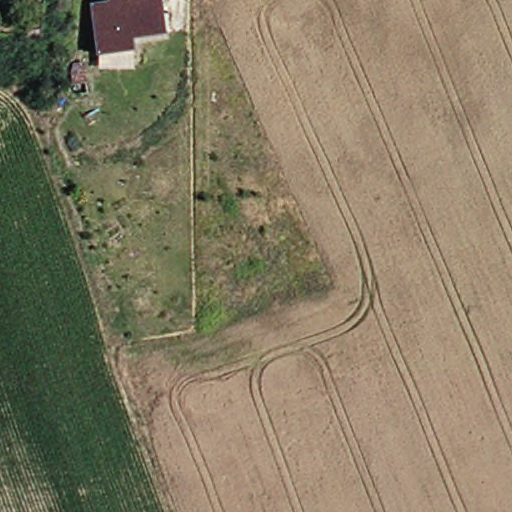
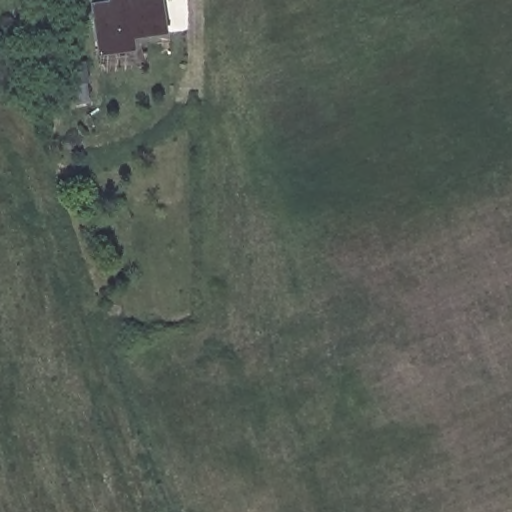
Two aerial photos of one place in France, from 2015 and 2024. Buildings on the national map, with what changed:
unchanged [(168,32),(134,39),(136,49),(135,68),(98,68),(98,55),(89,4),(106,0),(163,0),(168,32)]

